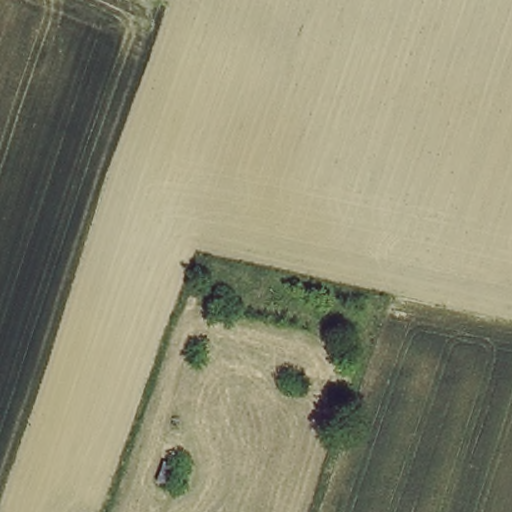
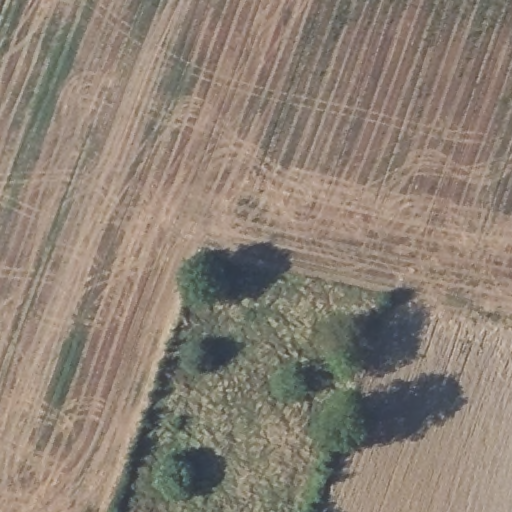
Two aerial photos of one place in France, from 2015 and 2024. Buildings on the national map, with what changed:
unchanged [(176,463),(168,487),(154,483),(163,459),(176,463)]

